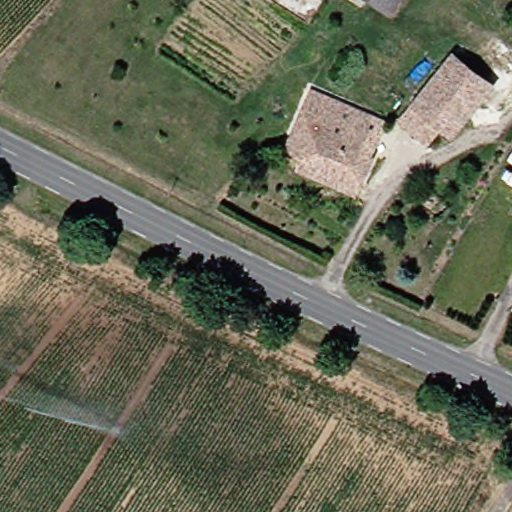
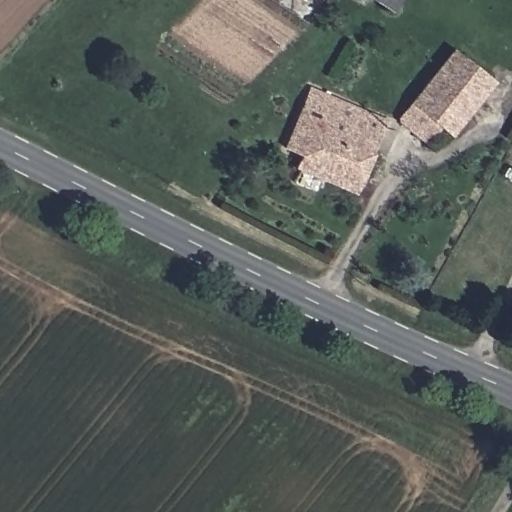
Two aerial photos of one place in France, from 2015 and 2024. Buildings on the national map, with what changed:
unchanged [(382,5),(374,0),(386,0),(382,5)]
unchanged [(447,50),(480,78),(488,84),(476,98),(448,131),(436,120),(425,133),(418,141),(391,117),(397,109),(447,50)]
unchanged [(287,166),(292,154),(278,147),(296,107),(303,92),(335,106),(378,126),(378,130),(380,133),(384,133),(380,141),(384,143),(379,155),(370,151),(356,184),(350,195),(287,166)]

